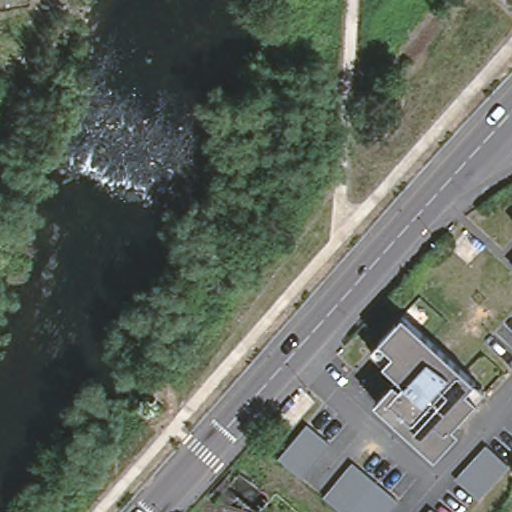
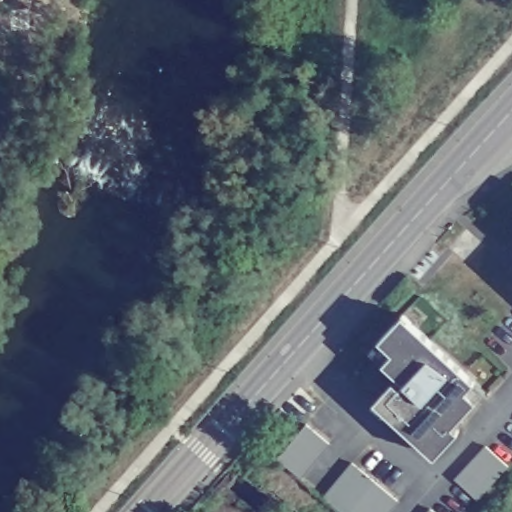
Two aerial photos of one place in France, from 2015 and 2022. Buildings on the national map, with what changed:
unchanged [(377,410),(384,401),(380,397),(390,385),(367,367),(375,356),(361,344),(382,317),(459,379),(452,389),(462,397),(440,425),(446,430),(428,452),(377,410)]
unchanged [(303,422),(327,441),(301,477),(277,459),(303,422)]
unchanged [(484,448),(507,467),(479,502),(456,483),(484,448)]
unchanged [(395,498),(385,512),(336,512),(320,500),(346,463),(395,498)]
unchanged [(431,512),(426,512),(427,510),(431,512)]

